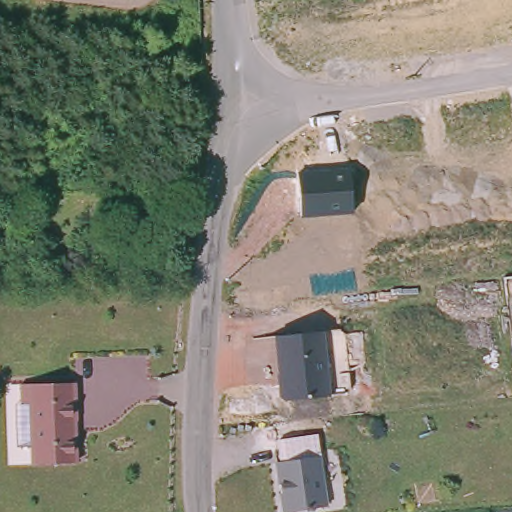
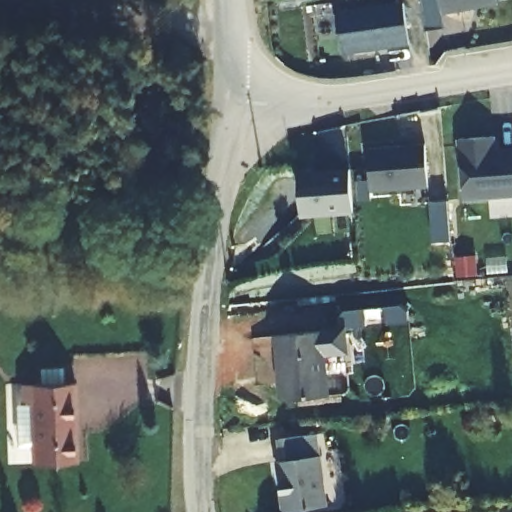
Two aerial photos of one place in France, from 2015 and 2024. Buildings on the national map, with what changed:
new [(440,0),(443,15),(445,27),(425,30),(421,0),(440,0)]
new [(443,15),(440,0),(495,0),(496,6),(443,15)]
new [(340,56),(334,12),(402,2),(409,46),(340,56)]
new [(495,137),(496,154),(512,152),(512,197),(463,201),(457,141),(495,137)]
new [(425,147),(428,188),(370,194),(365,151),(425,147)]
unchanged [(350,169),(354,214),(300,218),(297,172),(350,169)]
unchanged [(275,336),(325,331),(328,396),(280,402),(275,336)]
unchanged [(78,380),(78,459),(37,459),(36,397),(29,397),(29,379),(78,380)]
unchanged [(273,458),(322,453),(326,506),(278,512),(273,458)]

